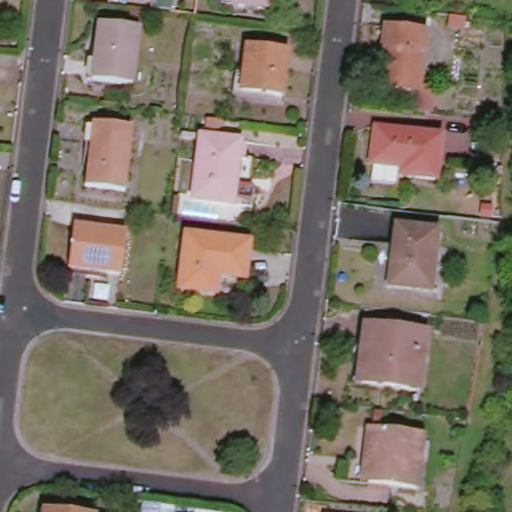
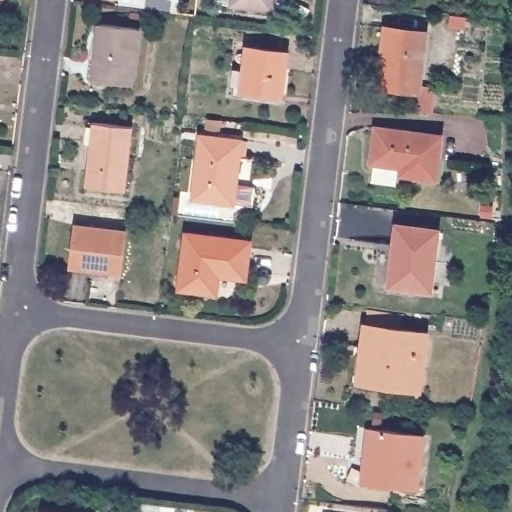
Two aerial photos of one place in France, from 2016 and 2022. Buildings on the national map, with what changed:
unchanged [(229,0),(283,0),(281,11),(269,10),(228,6),(229,0)]
unchanged [(463,21),(462,31),(447,30),(448,19),(463,21)]
unchanged [(433,109),(417,107),(419,88),(379,83),(387,24),(428,29),(421,82),(436,84),(433,109)]
unchanged [(89,79),(93,52),(95,54),(100,26),(137,30),(129,84),(89,79)]
unchanged [(234,91),(238,66),(246,67),(248,42),(291,48),(285,92),(269,90),(269,95),(234,91)]
unchanged [(91,153),(94,153),(95,143),(88,142),(90,122),(98,124),(136,129),(128,192),(87,187),(91,153)]
unchanged [(401,175),(401,168),(369,164),(374,129),(439,137),(434,179),(401,175)]
unchanged [(194,201),(203,136),(245,141),(241,175),(238,175),(234,205),(194,201)]
unchanged [(65,273),(66,267),(72,226),(123,232),(118,274),(94,271),(93,277),(65,273)]
unchanged [(392,287),(399,227),(439,232),(433,292),(392,287)]
unchanged [(182,290),(188,234),(253,242),(247,279),(221,276),(219,293),(182,290)]
unchanged [(418,391),(361,383),(366,350),(361,350),(364,326),(366,311),(402,316),(399,331),(425,335),(418,391)]
unchanged [(364,462),(367,430),(422,436),(415,488),(367,483),(361,482),(364,462)]

